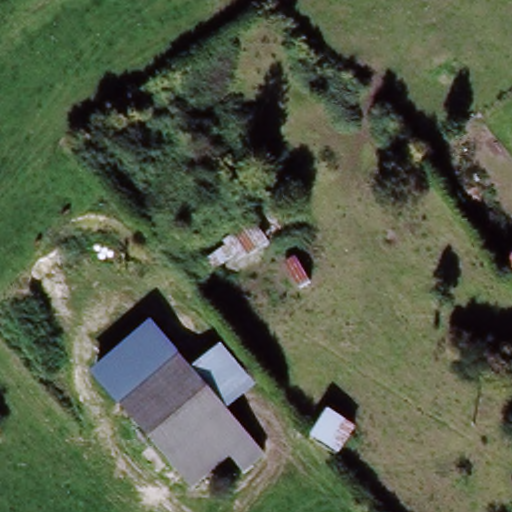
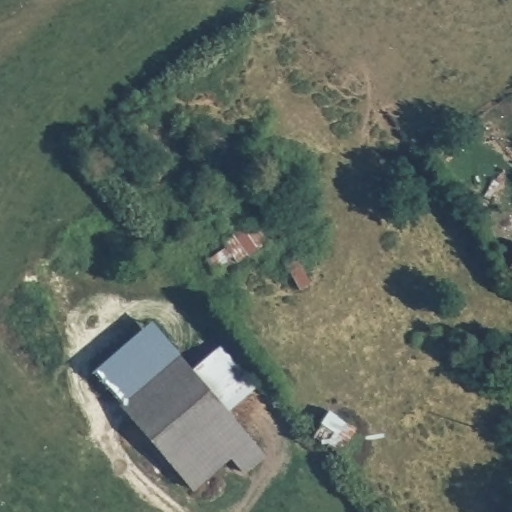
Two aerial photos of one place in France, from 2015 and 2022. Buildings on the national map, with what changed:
unchanged [(240,260),(236,256),(216,271),(205,258),(223,245),(220,240),(262,208),(280,229),(240,260)]
unchanged [(92,370),(153,322),(196,370),(190,376),(160,401),(138,420),(92,370)]
unchanged [(220,347),(253,387),(227,407),(196,370),(220,347)]
unchanged [(226,406),(227,407),(170,456),(138,420),(190,376),(196,370),(226,406)]
unchanged [(227,407),(267,453),(248,469),(234,451),(195,486),(170,456),(227,407)]
unchanged [(356,432),(338,458),(315,442),(333,416),(356,432)]

